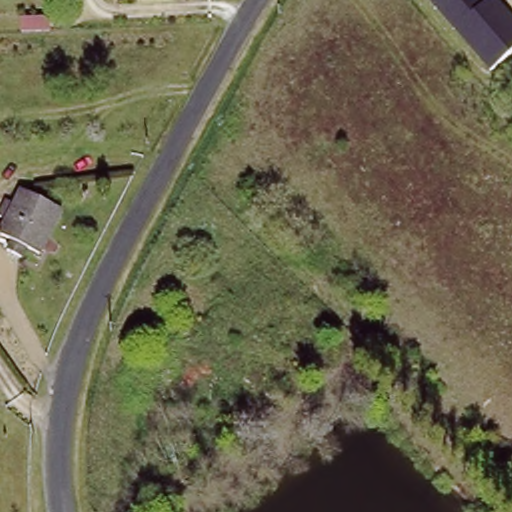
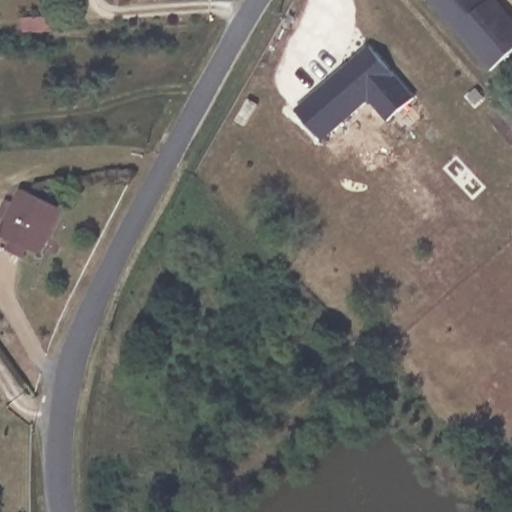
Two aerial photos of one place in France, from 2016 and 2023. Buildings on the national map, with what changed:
unchanged [(512,19),(512,53),(490,74),(430,0),(496,0),(512,19)]
new [(342,73),(371,49),(416,100),(390,123),(371,100),(321,144),(295,114),(315,98),(342,73)]
unchanged [(65,206),(49,255),(38,253),(36,262),(22,257),(25,249),(13,245),(17,230),(7,227),(14,205),(25,209),(29,195),(65,206)]

